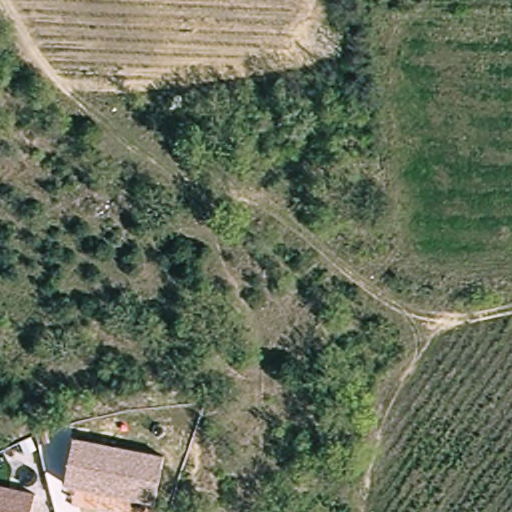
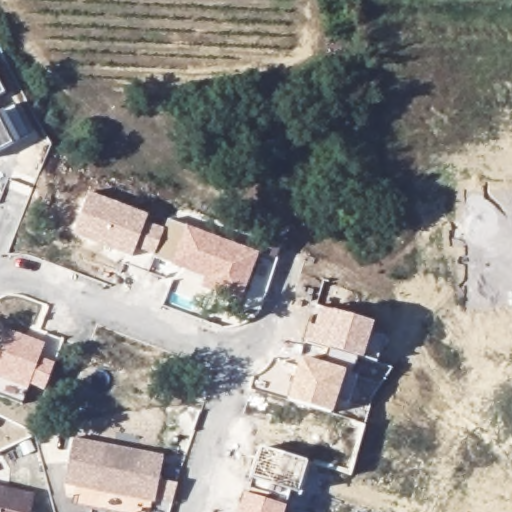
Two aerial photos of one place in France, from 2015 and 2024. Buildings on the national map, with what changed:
new [(0,86),(4,94),(0,96),(0,86)]
new [(31,135),(20,141),(0,152),(0,112),(15,105),(31,135)]
new [(240,302),(200,287),(204,276),(171,264),(136,249),(132,257),(72,235),(90,192),(149,215),(147,220),(164,227),(167,220),(185,226),(186,225),(259,253),(240,302)]
new [(333,415),(287,400),(301,357),(324,365),(329,349),(323,347),(305,340),(309,325),(317,326),(322,308),(334,312),(374,323),(362,358),(357,357),(351,375),(357,377),(348,402),(337,400),(333,415)]
new [(55,362),(45,390),(30,385),(28,389),(22,404),(0,396),(0,327),(46,344),(41,357),(55,362)]
unchanged [(76,440),(166,457),(157,499),(133,495),(131,498),(66,484),(76,440)]
new [(289,491),(283,512),(238,512),(249,479),(258,447),(308,461),(299,493),(289,491)]
unchanged [(31,512),(0,512),(0,485),(35,495),(31,512)]

